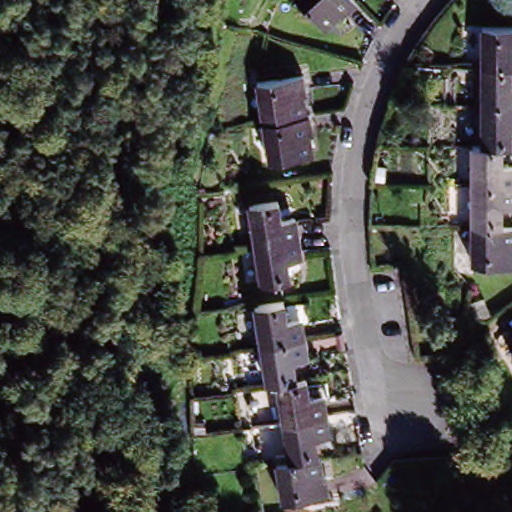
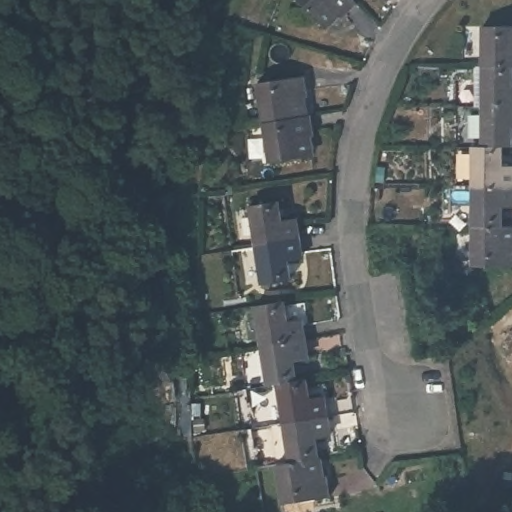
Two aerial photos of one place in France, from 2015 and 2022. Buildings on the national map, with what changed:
unchanged [(341,15),(326,29),(298,0),(355,0),(361,6),(346,20),(341,15)]
unchanged [(481,32),(512,32),(512,75),(481,75),(481,32)]
unchanged [(253,84),(303,73),(309,100),(303,101),(306,118),(261,126),(253,84)]
unchanged [(481,75),(512,75),(512,113),(480,113),(481,75)]
unchanged [(479,153),(480,113),(512,113),(512,152),(507,153),(479,153)]
unchanged [(306,118),(314,117),(318,140),(311,141),(314,161),(269,169),(261,126),(306,118)]
unchanged [(471,153),(479,153),(507,153),(507,175),(512,175),(512,195),(471,195),(471,153)]
unchanged [(471,195),(512,195),(512,214),(506,215),(505,236),(472,235),(471,195)]
unchanged [(251,207),(281,201),(284,223),(299,220),(303,241),(259,249),(251,207)]
unchanged [(505,236),(512,236),(512,277),(472,277),(472,235),(505,236)]
unchanged [(303,241),(307,263),(293,266),(296,285),(266,290),(259,249),(303,241)]
unchanged [(482,316),(476,299),(493,293),(498,308),(482,316)]
unchanged [(287,320),(301,319),(304,338),(259,345),(254,307),(284,302),(287,320)]
unchanged [(304,338),(308,360),(294,362),(297,382),(279,385),(266,387),(259,345),(304,338)]
unchanged [(509,363),(512,355),(512,365),(509,363)]
unchanged [(279,385),(297,382),(308,381),(311,398),(324,397),(327,421),(286,426),(279,385)]
unchanged [(326,479),(330,501),(282,508),(276,468),(270,434),(286,433),(286,426),(327,421),(330,440),(314,442),(318,462),(321,479),(326,479)]

